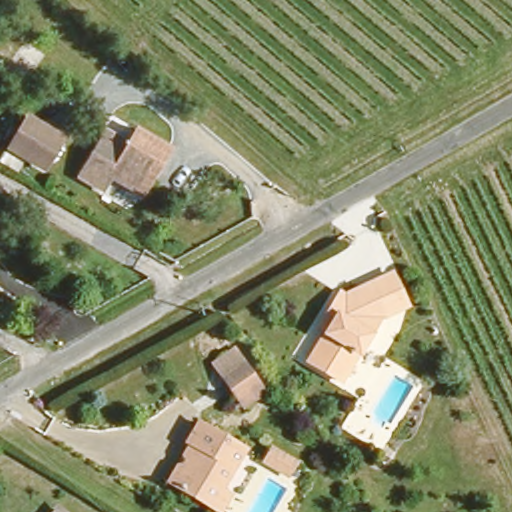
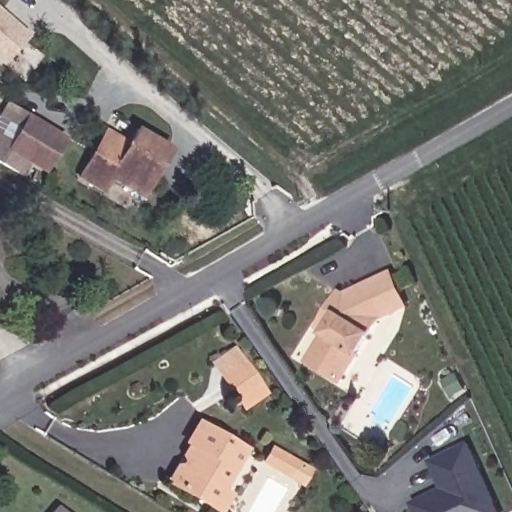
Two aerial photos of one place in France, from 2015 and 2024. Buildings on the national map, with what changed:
new [(30,34),(2,66),(0,64),(0,8),(30,34)]
demolished [(512,40),(512,56),(505,44),(512,40)]
unchanged [(29,120),(60,140),(45,165),(14,146),(29,120)]
unchanged [(135,192),(110,177),(102,190),(80,175),(111,127),(130,141),(140,127),(174,151),(160,172),(144,197),(135,192)]
unchanged [(396,292),(369,303),(330,366),(297,349),(326,305),(318,300),(332,280),(345,287),(353,275),(383,262),(396,292)]
unchanged [(240,410),(209,363),(236,346),(267,392),(240,410)]
unchanged [(220,502),(210,496),(178,473),(170,468),(195,433),(186,427),(199,411),(249,443),(221,482),(230,487),(220,502)]
unchanged [(286,478),(257,462),(269,444),(298,460),(286,478)]
new [(477,512),(418,512),(413,503),(439,491),(441,495),(450,491),(447,484),(442,486),(430,461),(468,444),(495,502),(477,511),(477,512)]
unchanged [(74,512),(40,512),(56,495),(74,512)]

